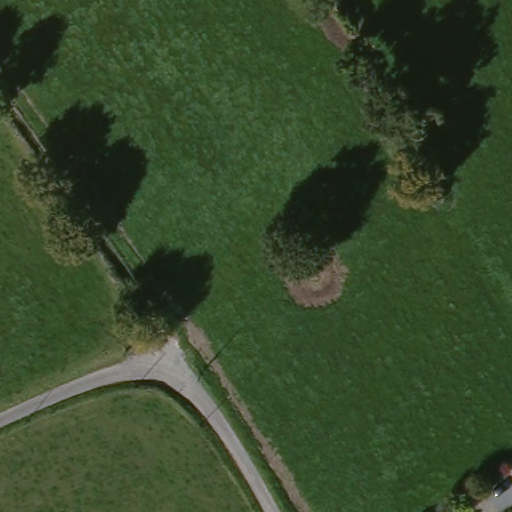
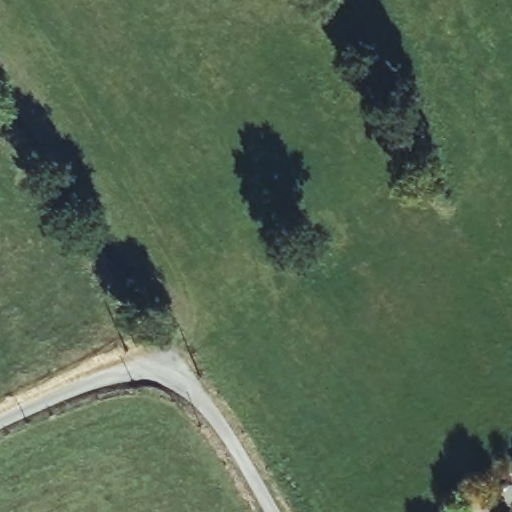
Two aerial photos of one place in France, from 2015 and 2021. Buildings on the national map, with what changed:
[]

